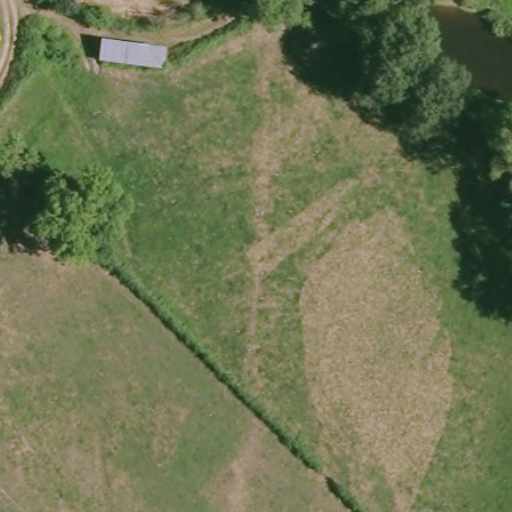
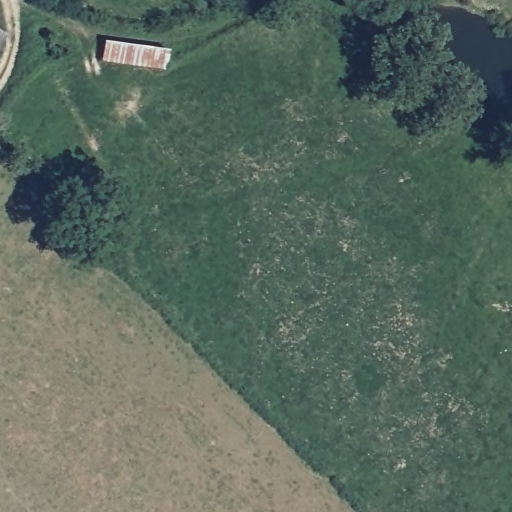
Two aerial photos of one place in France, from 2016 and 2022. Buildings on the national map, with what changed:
unchanged [(11,42),(0,59),(0,36),(11,42)]
unchanged [(110,46),(173,53),(170,73),(106,64),(110,46)]

